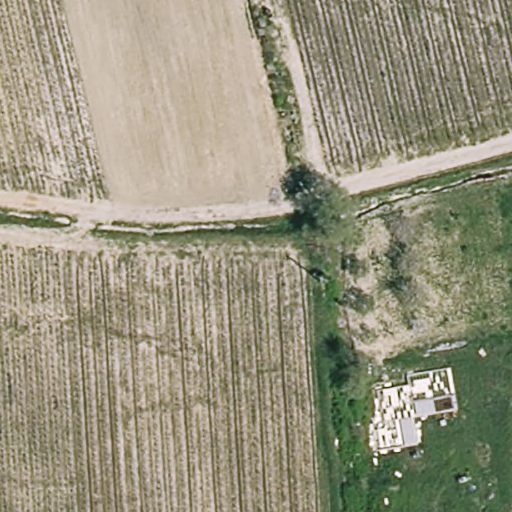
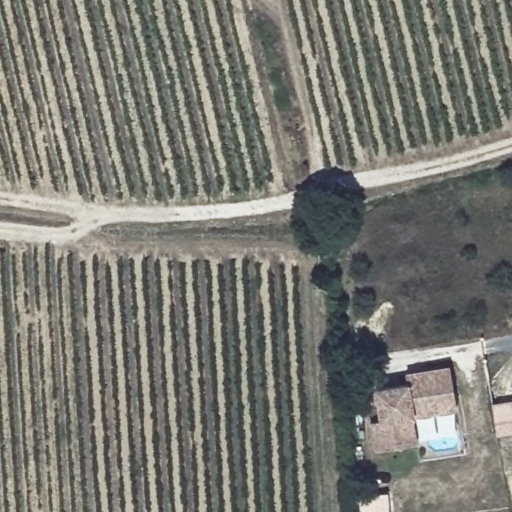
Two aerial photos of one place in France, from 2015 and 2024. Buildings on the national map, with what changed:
new [(412,417),(417,445),(375,452),(370,423),(379,421),(375,390),(407,383),(407,373),(450,365),(456,410),(412,417)]
new [(512,442),(502,443),(498,415),(512,413),(512,442)]

